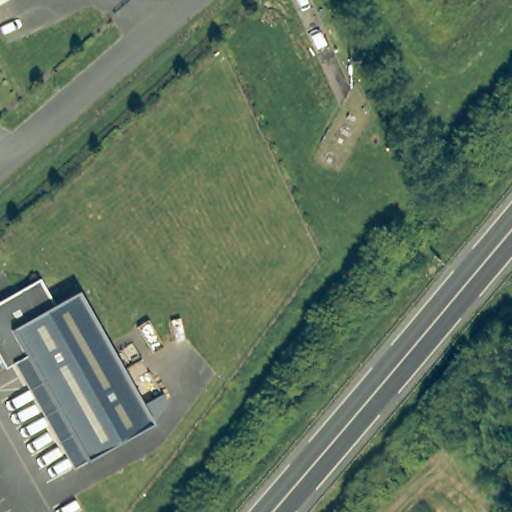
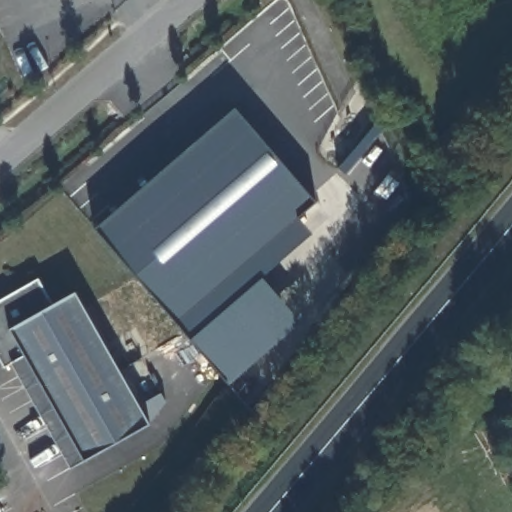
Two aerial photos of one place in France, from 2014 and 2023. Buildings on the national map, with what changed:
new [(317,202),(300,218),(313,234),(189,339),(94,230),(235,107),(317,202)]
unchanged [(13,286),(36,273),(51,300),(73,287),(147,418),(82,455),(23,351),(2,363),(0,360),(0,299),(16,290),(13,286)]
new [(23,351),(82,455),(67,464),(8,360),(23,351)]

